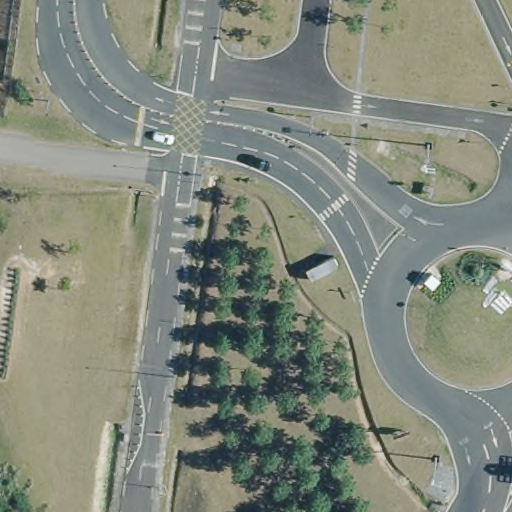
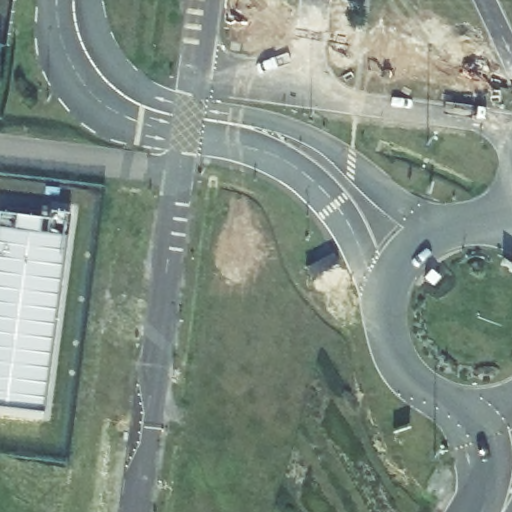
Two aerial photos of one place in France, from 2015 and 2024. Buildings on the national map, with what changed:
new [(16,236),(18,220),(40,221),(39,238),(66,241),(44,414),(0,410),(0,234),(16,236)]

